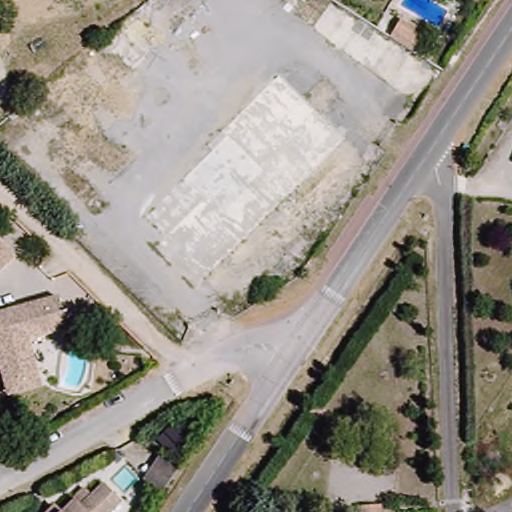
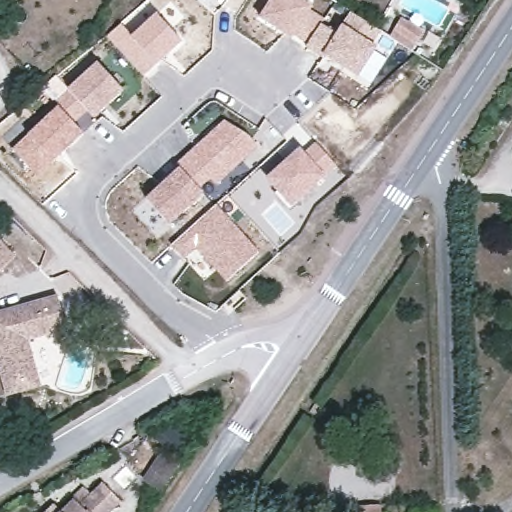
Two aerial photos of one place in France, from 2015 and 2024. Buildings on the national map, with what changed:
new [(313,7),(309,11),(324,21),(309,44),(293,33),(291,38),(261,17),(272,0),(301,0),(313,7)]
new [(336,33),(342,24),(351,12),(381,31),(373,44),(378,47),(358,77),(325,55),(323,58),(306,48),(309,44),(322,23),(336,33)]
new [(125,28),(132,36),(158,15),(181,43),(146,76),(110,36),(125,28)]
new [(425,31),(412,53),(390,39),(402,18),(425,31)]
demolished [(414,41),(404,35),(412,18),(424,25),(414,41)]
new [(123,91),(93,117),(88,110),(75,122),(57,103),(71,92),(70,90),(98,64),(123,91)]
demolished [(155,243),(166,233),(148,212),(212,148),(206,142),(278,70),(346,142),(275,208),(272,205),(196,284),(155,243)]
new [(28,135),(59,105),(75,122),(83,133),(54,161),(39,176),(13,149),(28,135)]
new [(176,164),(223,120),(251,137),(258,147),(216,185),(211,180),(200,190),(180,169),(176,164)]
new [(300,146),(304,150),(315,140),(336,164),(291,207),(266,177),(300,146)]
new [(205,195),(171,226),(147,200),(180,169),(205,195)]
new [(217,203),(260,251),(226,281),(196,249),(184,259),(171,245),(217,203)]
unchanged [(0,239),(2,237),(18,256),(0,272),(0,239)]
unchanged [(5,382),(0,363),(0,309),(61,293),(71,330),(30,337),(40,387),(5,393),(5,382)]
unchanged [(50,496),(56,503),(72,489),(80,499),(101,482),(116,499),(102,512),(37,512),(35,509),(50,496)]
unchanged [(389,500),(389,512),(367,512),(368,503),(389,500)]

